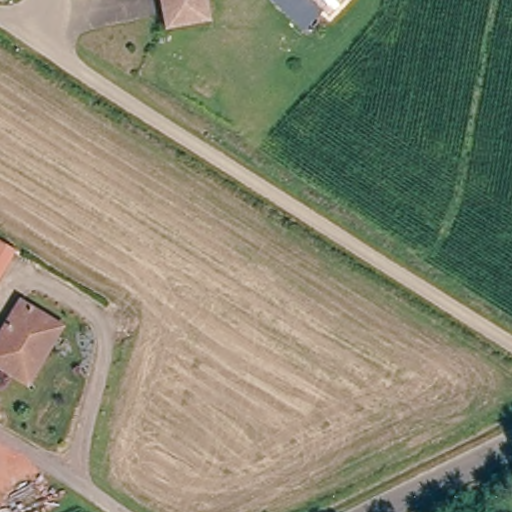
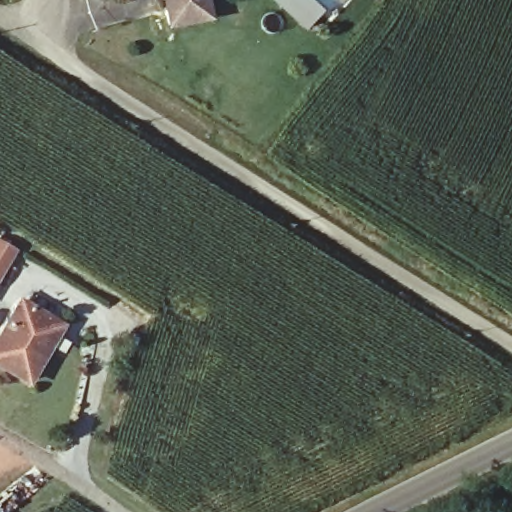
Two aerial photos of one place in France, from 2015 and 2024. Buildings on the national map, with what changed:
unchanged [(169,25),(165,0),(213,0),(216,17),(169,25)]
unchanged [(318,0),(335,0),(327,9),(318,0)]
unchanged [(0,252),(5,245),(19,256),(0,281),(0,252)]
unchanged [(32,382),(0,362),(0,343),(25,302),(61,325),(44,351),(50,355),(32,382)]

